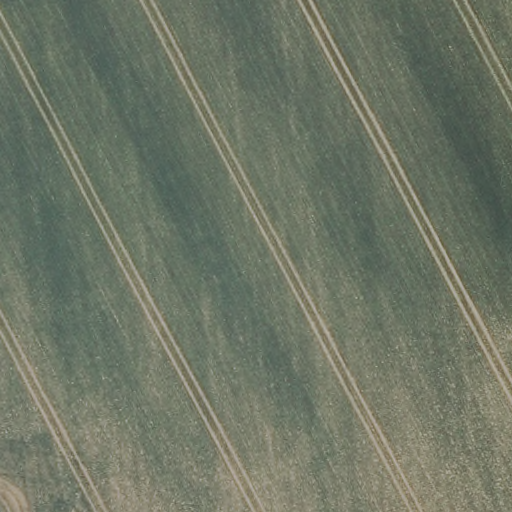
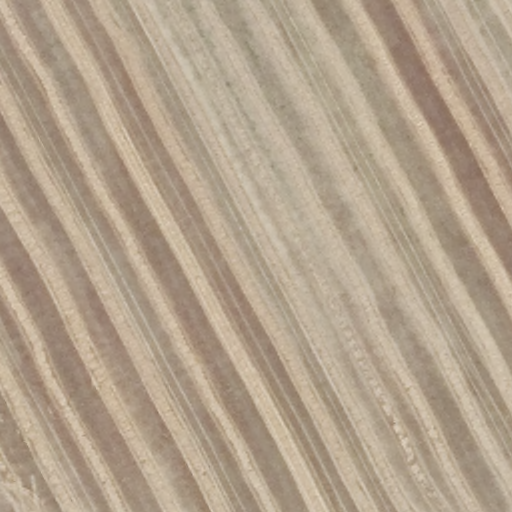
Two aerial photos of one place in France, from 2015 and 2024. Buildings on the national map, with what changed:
[]

